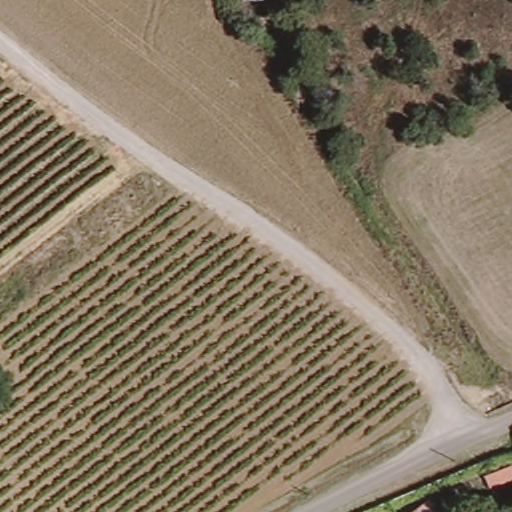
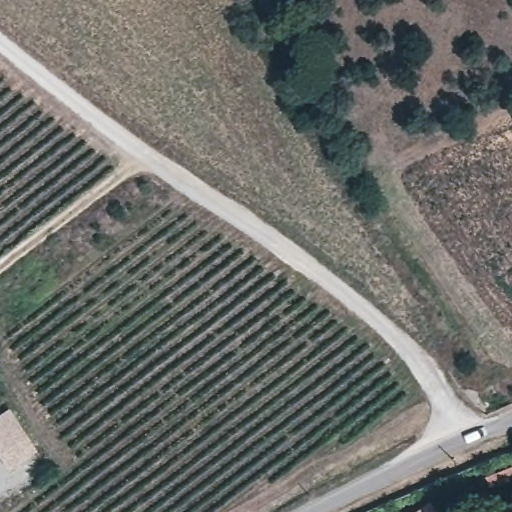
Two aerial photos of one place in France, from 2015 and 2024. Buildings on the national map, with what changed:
new [(10,464),(0,448),(0,416),(11,410),(19,423),(35,448),(10,464)]
unchanged [(512,469),(512,482),(492,489),(488,477),(512,469)]
unchanged [(432,500),(441,512),(416,512),(432,500)]

